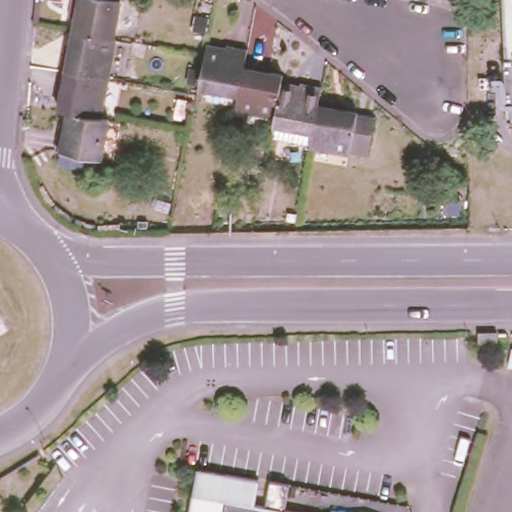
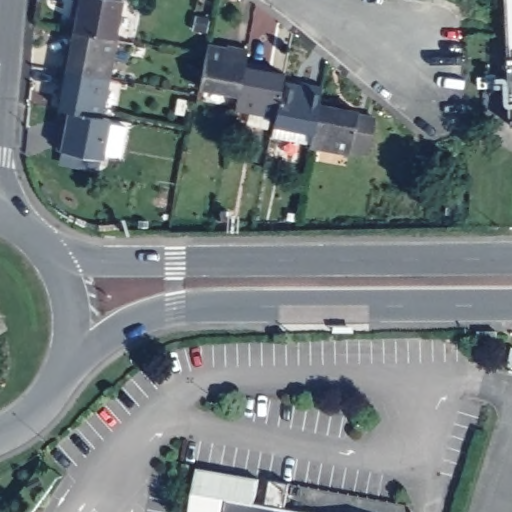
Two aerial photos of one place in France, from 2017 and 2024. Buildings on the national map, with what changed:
unchanged [(70,7),(71,0),(118,0),(111,35),(70,27),(74,9),(70,7)]
unchanged [(503,121),(502,107),(504,105),(500,0),(512,0),(512,127),(511,127),(510,121),(503,121)]
unchanged [(62,45),(67,46),(70,27),(111,35),(103,74),(58,65),(62,45)]
unchanged [(197,77),(202,54),(205,37),(225,42),(227,36),(247,40),(244,52),(237,86),(197,77)]
unchanged [(235,99),(237,86),(244,52),(264,56),(263,62),(282,66),(280,79),(273,107),(235,99)]
unchanged [(58,86),(55,85),(58,65),(103,74),(95,113),(65,107),(55,105),(58,86)]
unchanged [(268,132),(273,107),(280,79),(298,82),(300,77),(320,81),(317,95),(308,141),(268,132)]
unchanged [(337,100),(336,104),(355,109),(355,113),(372,117),(364,152),(308,141),(317,95),(337,100)]
unchanged [(97,155),(53,147),(57,125),(62,126),(65,107),(95,113),(105,115),(97,155)]
unchanged [(198,470),(260,480),(255,506),(295,512),(191,512),(198,470)]

